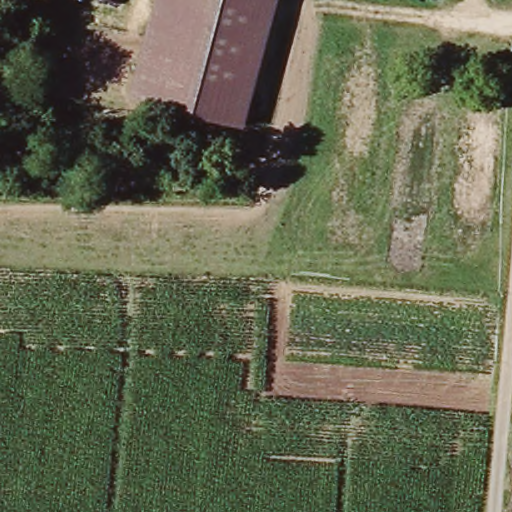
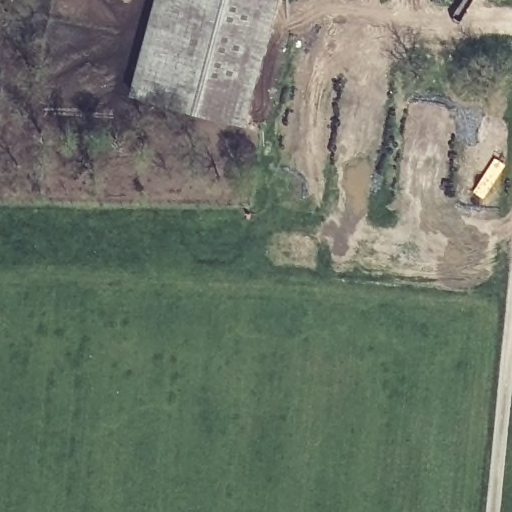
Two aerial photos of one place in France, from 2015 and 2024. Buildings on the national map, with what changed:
unchanged [(247,126),(129,95),(152,0),(280,0),(247,126)]

